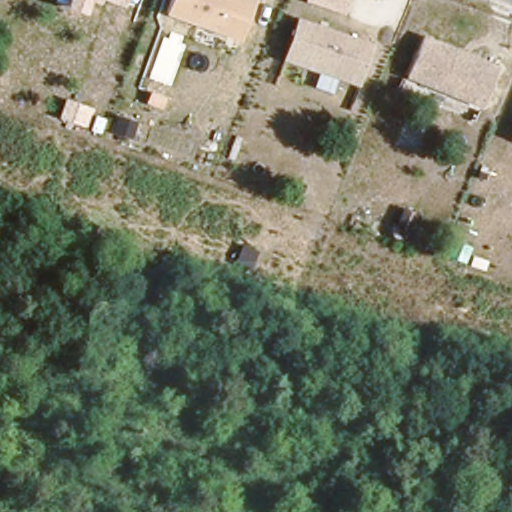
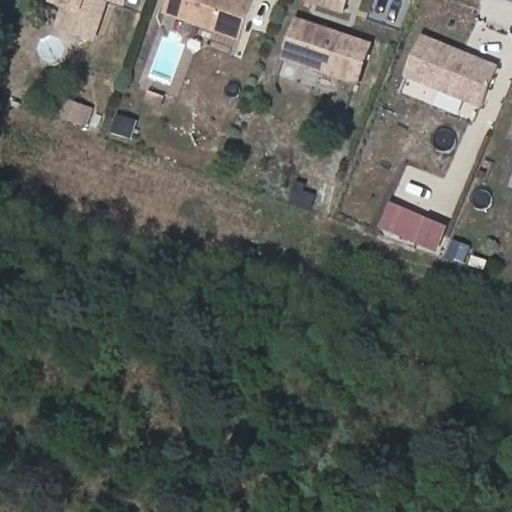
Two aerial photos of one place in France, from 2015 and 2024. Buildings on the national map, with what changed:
unchanged [(90,1),(86,14),(64,8),(66,0),(100,0),(99,3),(90,1)]
unchanged [(129,0),(127,8),(104,0),(129,0)]
unchanged [(254,0),(240,41),(163,14),(168,0),(254,0)]
unchanged [(348,0),(343,15),(304,1),(304,0),(348,0)]
unchanged [(296,17),(372,43),(358,85),(282,60),(296,17)]
unchanged [(420,34),(497,65),(480,107),(404,77),(420,34)]
unchanged [(512,142),(508,140),(512,130),(512,142)]
new [(391,202),(451,227),(439,254),(380,230),(391,202)]

